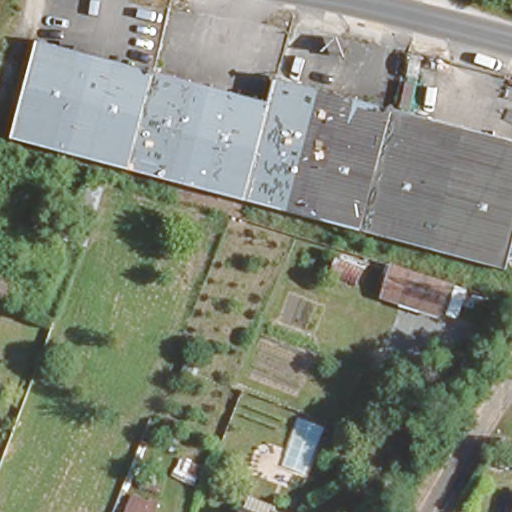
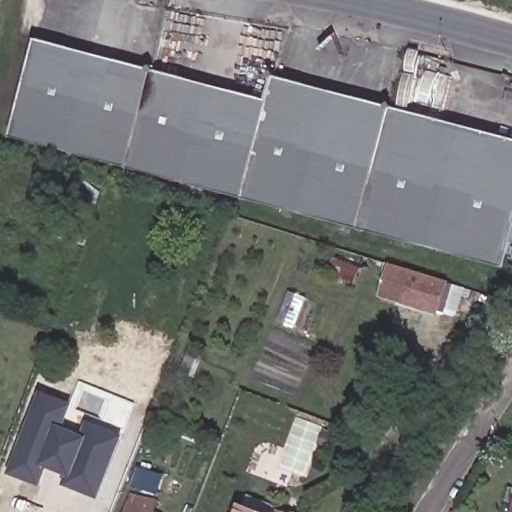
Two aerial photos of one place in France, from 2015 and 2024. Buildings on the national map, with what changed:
unchanged [(11,140),(35,42),(254,96),(212,188),(11,140)]
unchanged [(212,188),(254,96),(263,98),(268,75),(342,94),(297,210),(212,188)]
unchanged [(512,137),(512,223),(502,262),(297,210),(342,94),(512,137)]
unchanged [(353,289),(328,278),(335,263),(360,274),(353,289)]
unchanged [(443,313),(404,300),(413,272),(452,285),(443,313)]
new [(127,435),(102,500),(66,486),(69,477),(50,469),(43,487),(11,475),(42,392),(75,404),(65,427),(85,435),(91,421),(127,435)]
unchanged [(321,450),(328,431),(337,434),(330,453),(321,450)]
unchanged [(120,512),(128,486),(153,493),(150,502),(160,505),(158,512),(120,512)]
unchanged [(254,512),(230,512),(233,504),(254,512)]
unchanged [(284,512),(272,512),(273,508),(284,512)]

